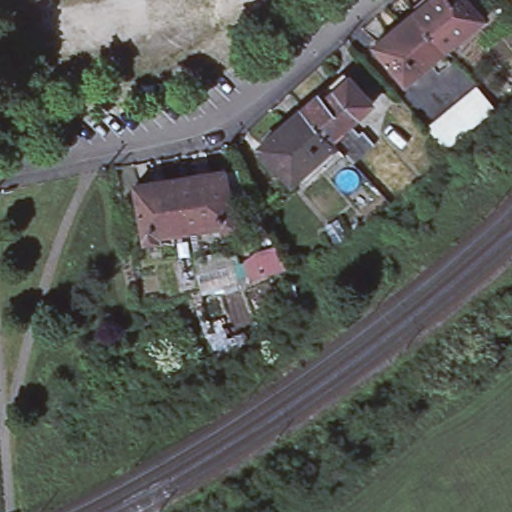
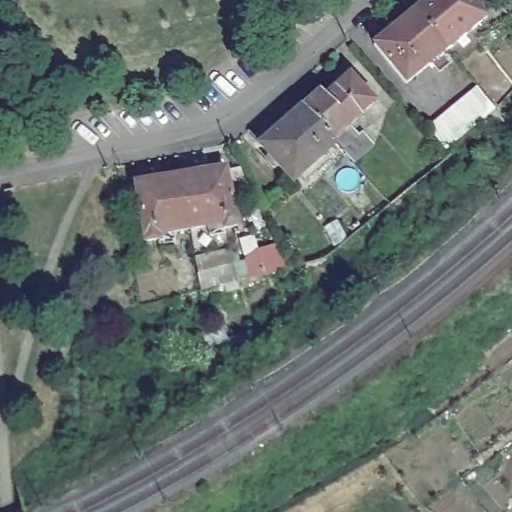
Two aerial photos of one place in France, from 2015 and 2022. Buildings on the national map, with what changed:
unchanged [(472,0),(486,16),(448,48),(416,10),(427,0),(472,0)]
unchanged [(407,82),(376,44),(416,10),(448,48),(407,82)]
unchanged [(376,136),(355,156),(345,145),(337,137),(305,101),(321,87),(325,92),(333,84),(349,70),(373,96),(358,110),(350,119),(360,129),(364,125),(376,136)]
unchanged [(478,90),(497,113),(447,154),(428,132),(478,90)]
unchanged [(305,101),(337,137),(295,176),(261,140),(305,101)]
unchanged [(228,167),(238,225),(224,227),(223,223),(189,229),(180,175),(228,167)]
unchanged [(158,234),(159,239),(147,241),(137,182),(180,175),(189,229),(158,234)]

